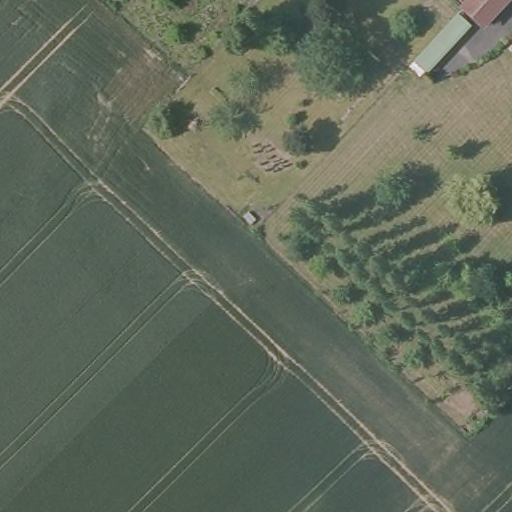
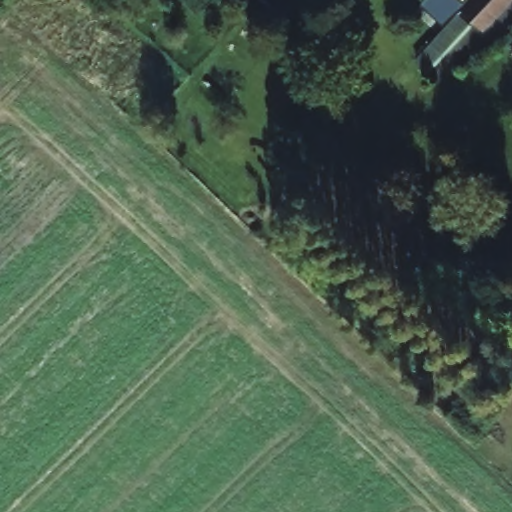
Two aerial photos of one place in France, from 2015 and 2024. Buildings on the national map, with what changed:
unchanged [(465,0),(505,0),(486,20),(470,4),(465,0)]
unchanged [(470,25),(427,72),(415,62),(460,15),(470,25)]

